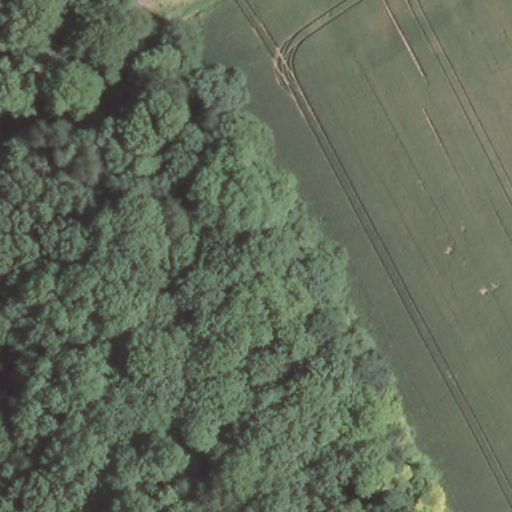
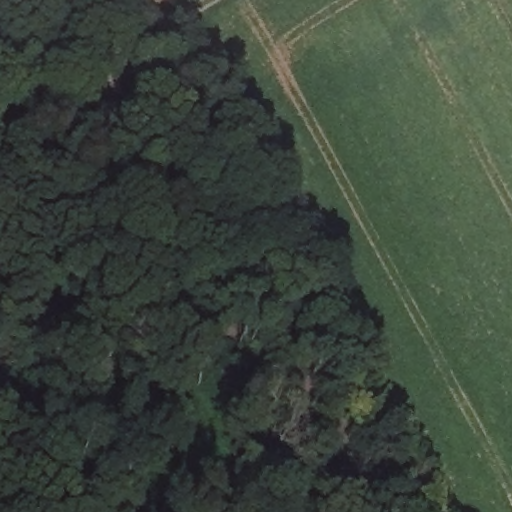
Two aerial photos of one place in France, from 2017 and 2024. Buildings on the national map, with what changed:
unchanged [(63,71),(48,111),(0,90),(0,65),(9,50),(63,71)]
unchanged [(20,157),(11,175),(0,171),(0,149),(20,157)]

